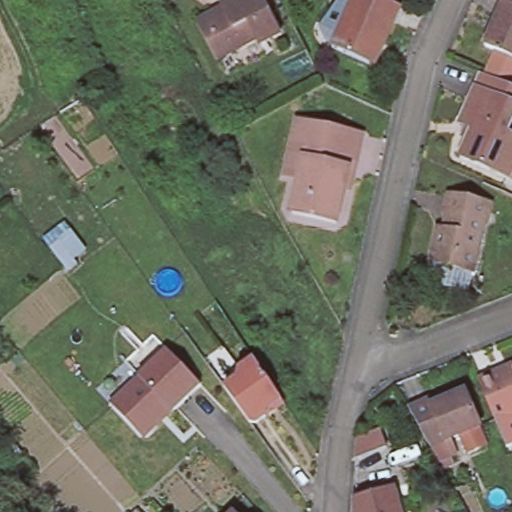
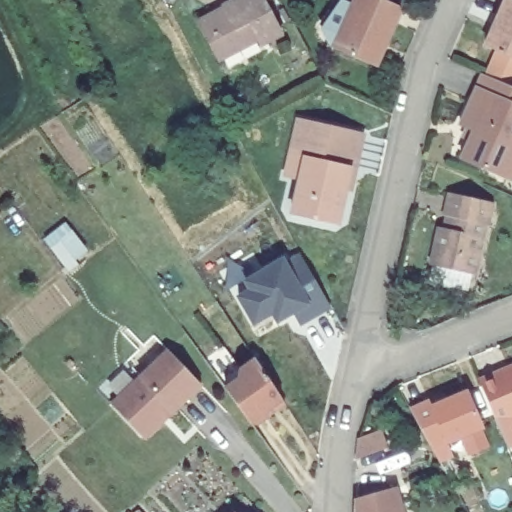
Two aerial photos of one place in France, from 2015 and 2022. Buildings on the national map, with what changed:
unchanged [(258,44),(254,37),(215,57),(194,18),(220,4),(218,2),(222,0),(263,0),(280,33),(258,44)]
unchanged [(331,18),(343,2),(354,7),(357,0),(380,0),(402,9),(389,40),(383,38),(371,65),(335,49),(336,46),(330,43),(323,29),(331,18)]
unchanged [(493,49),(482,44),(501,0),(512,0),(512,76),(508,84),(512,86),(512,102),(505,99),(494,126),(512,134),(512,138),(497,172),(448,150),(460,123),(446,116),(466,66),(483,73),(493,49)]
unchanged [(343,190),(340,189),(328,223),(285,208),(296,176),(281,170),(300,117),(361,138),(343,190)]
unchanged [(480,224),(476,223),(466,273),(423,264),(430,229),(437,231),(440,215),(436,214),(440,195),(483,204),(480,224)]
new [(236,295),(247,289),(242,278),(283,257),(300,251),(329,310),(299,326),(293,315),(276,324),(273,316),(252,327),(236,295)]
unchanged [(150,438),(143,437),(112,406),(168,351),(202,387),(175,414),(159,429),(150,438)]
unchanged [(271,417),(258,425),(250,422),(226,389),(240,381),(243,371),(244,370),(258,361),(283,399),(288,406),(271,417)]
unchanged [(498,420),(482,383),(480,377),(508,365),(512,363),(512,443),(508,445),(498,420)]
unchanged [(427,447),(405,407),(425,396),(439,389),(441,394),(461,384),(478,417),(477,418),(487,436),(468,446),(459,429),(448,435),(455,448),(435,460),(427,447)]
unchanged [(352,494),(351,477),(352,463),(355,443),(388,434),(393,451),(387,453),(395,481),(352,494)]
unchanged [(354,500),(392,489),(398,512),(354,512),(354,500)]

